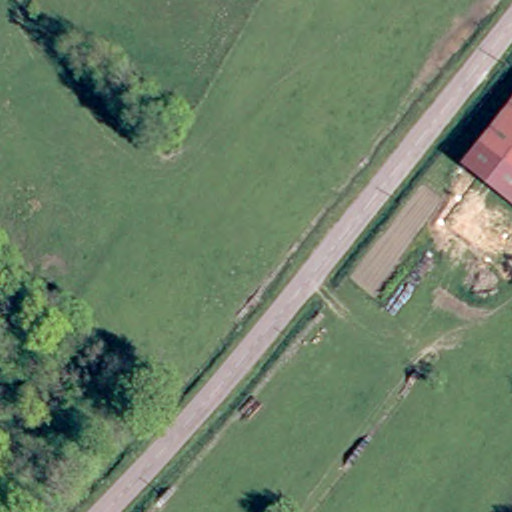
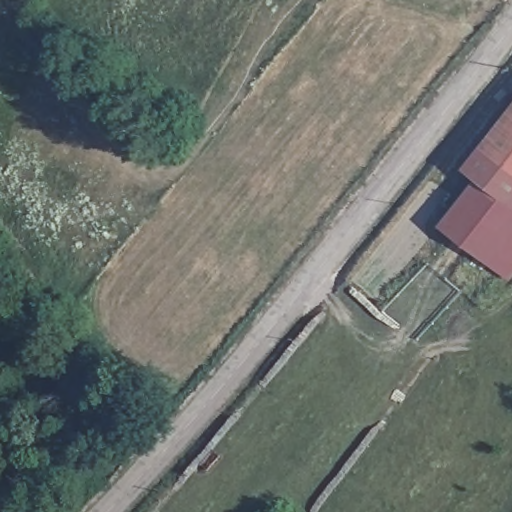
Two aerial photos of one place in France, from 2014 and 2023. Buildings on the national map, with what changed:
unchanged [(467,156),(512,99),(512,193),(467,156)]
new [(509,279),(440,224),(483,169),(512,193),(512,276),(509,279)]

